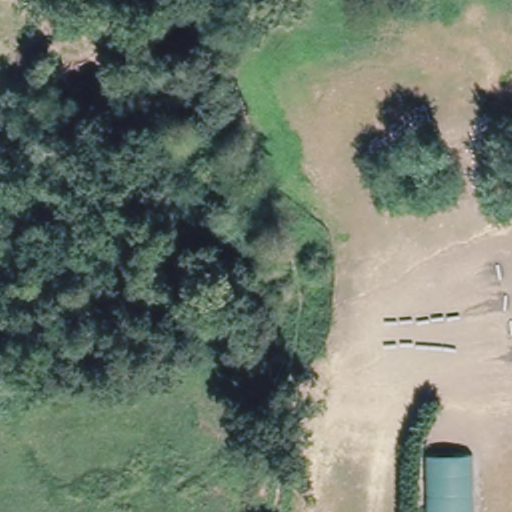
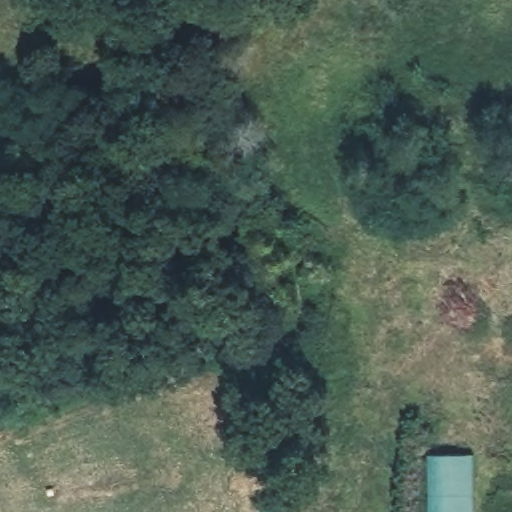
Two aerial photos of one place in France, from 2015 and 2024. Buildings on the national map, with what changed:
unchanged [(462,458),(464,512),(423,512),(422,457),(462,458)]

